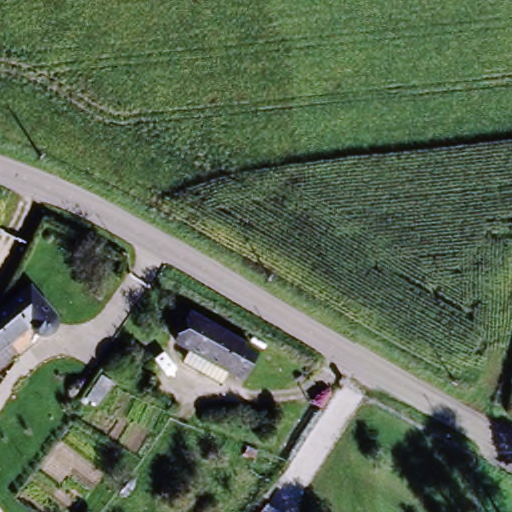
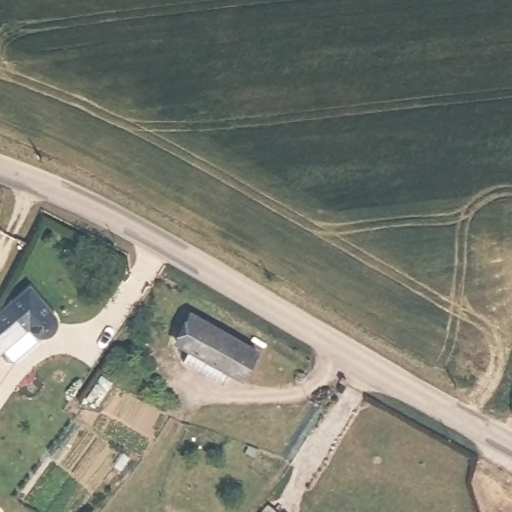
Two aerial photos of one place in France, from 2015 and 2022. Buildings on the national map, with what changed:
unchanged [(21,291),(41,317),(44,325),(40,333),(33,338),(28,337),(20,331),(0,348),(0,309),(8,302),(21,291)]
unchanged [(192,317),(258,348),(246,375),(235,371),(229,384),(187,362),(192,352),(188,348),(193,332),(188,328),(192,317)]
unchanged [(0,349),(8,358),(0,365),(0,349)]
unchanged [(267,504),(280,512),(261,512),(267,504)]

